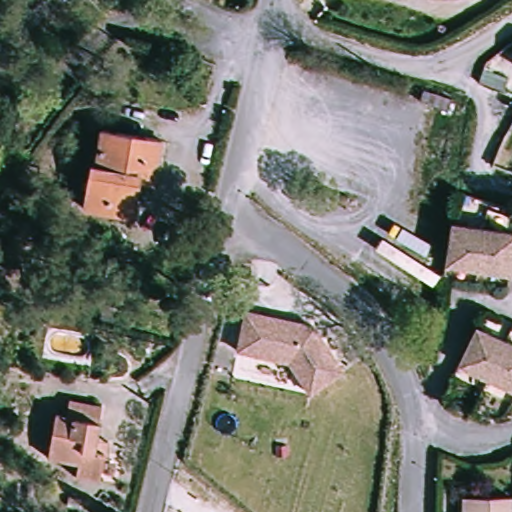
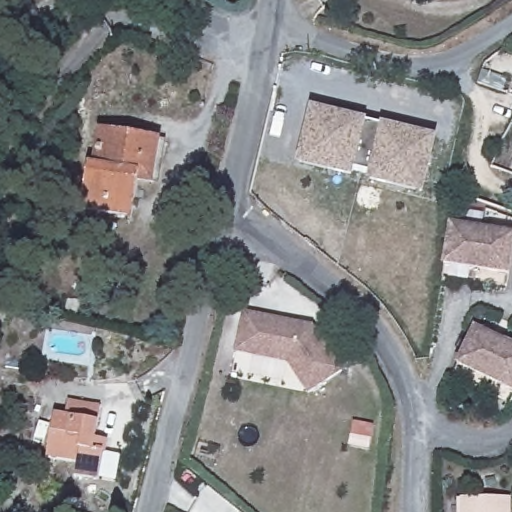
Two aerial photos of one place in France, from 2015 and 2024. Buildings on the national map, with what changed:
new [(390,190),(368,184),(370,180),(350,175),(349,180),(326,175),(297,167),(301,154),(311,114),(362,126),(357,145),(377,149),(381,131),(433,143),(423,184),(420,197),(390,190)]
unchanged [(89,167),(93,167),(102,130),(161,142),(156,164),(151,185),(135,182),(127,218),(80,207),(89,167)]
unchanged [(477,268),(440,262),(447,220),(482,225),(512,229),(512,248),(509,273),(477,268)]
unchanged [(312,328),(341,373),(306,395),(287,363),(235,352),(244,312),(312,328)]
unchanged [(512,343),(512,393),(486,378),(457,363),(478,325),(506,340),(512,343)]
unchanged [(101,469),(95,495),(74,490),(76,478),(43,470),(53,430),(63,432),(67,414),(100,422),(93,449),(105,452),(101,469)]
unchanged [(475,496),(512,499),(512,512),(462,512),(464,495),(475,496)]

